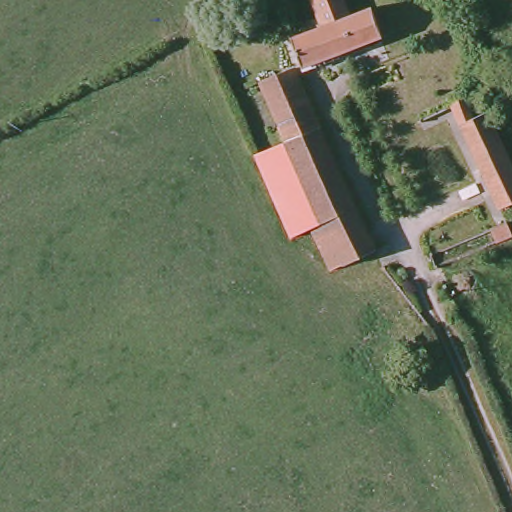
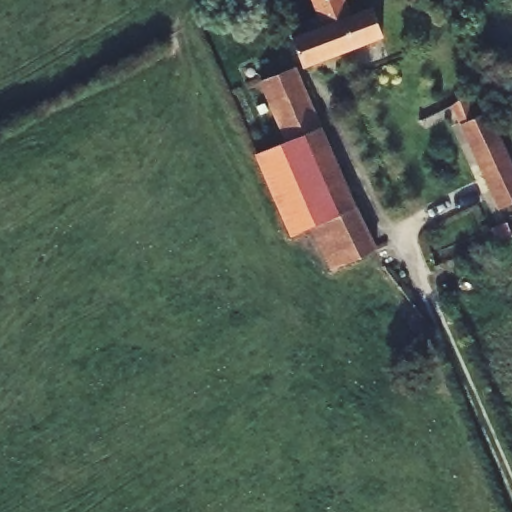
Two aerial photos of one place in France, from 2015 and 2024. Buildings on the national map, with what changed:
unchanged [(370,1),(384,39),(307,67),(293,33),(319,24),(309,0),(348,0),(351,9),(370,1)]
unchanged [(378,254),(334,273),(316,229),(292,241),(266,176),(258,158),(288,146),(264,88),(261,82),(297,66),(378,254)]
unchanged [(480,114),(493,109),(512,152),(512,206),(502,211),(454,109),(474,100),(480,114)]
unchanged [(489,230),(512,221),(512,222),(512,240),(497,247),(489,230)]

